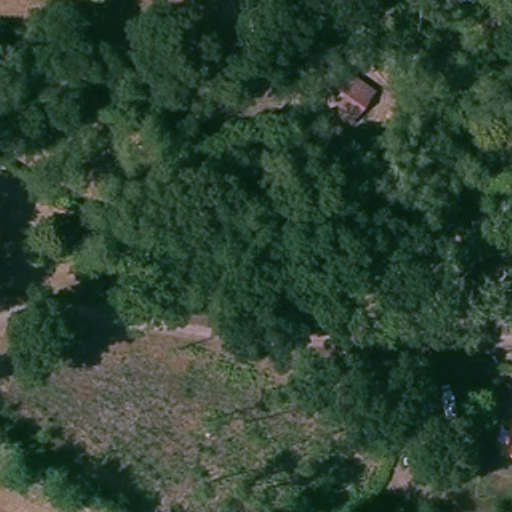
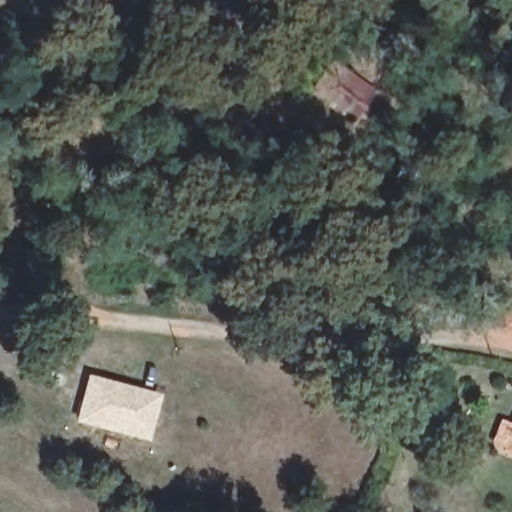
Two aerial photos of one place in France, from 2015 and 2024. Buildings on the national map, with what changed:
new [(355,119),(325,99),(345,69),(376,89),(355,119)]
new [(87,374),(160,394),(147,441),(75,421),(87,374)]
unchanged [(512,444),(512,449),(510,448),(512,444)]

